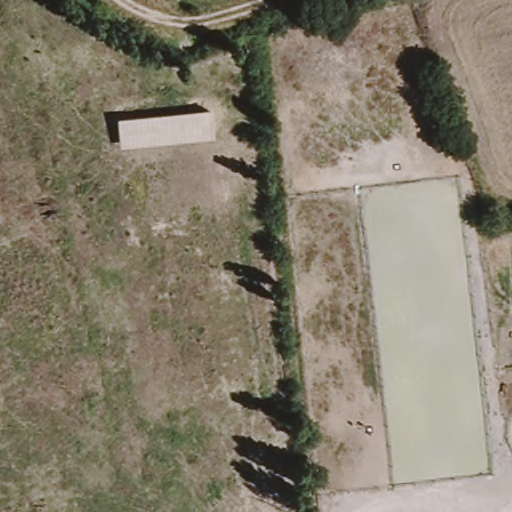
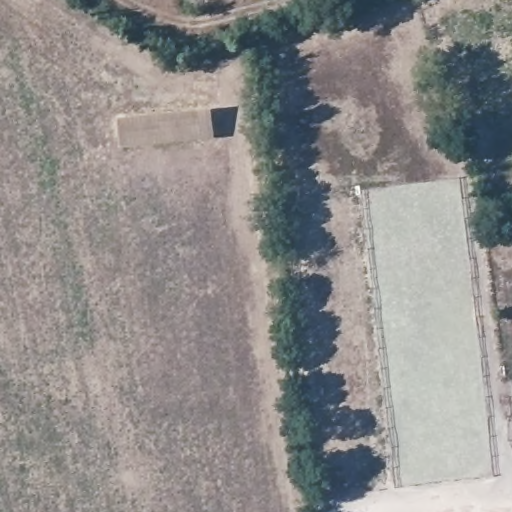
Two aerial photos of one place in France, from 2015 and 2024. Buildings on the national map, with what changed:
unchanged [(115,122),(213,113),(215,145),(119,154),(115,122)]

